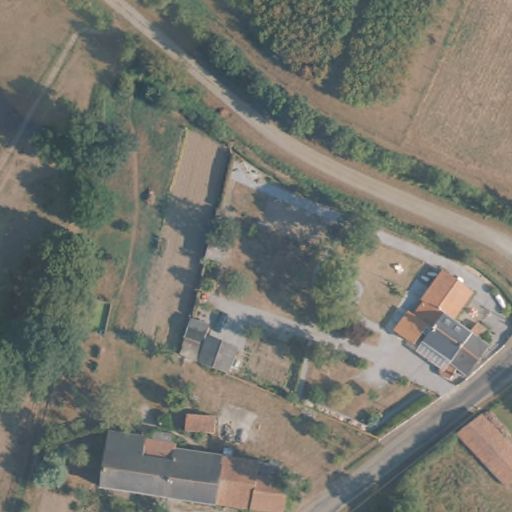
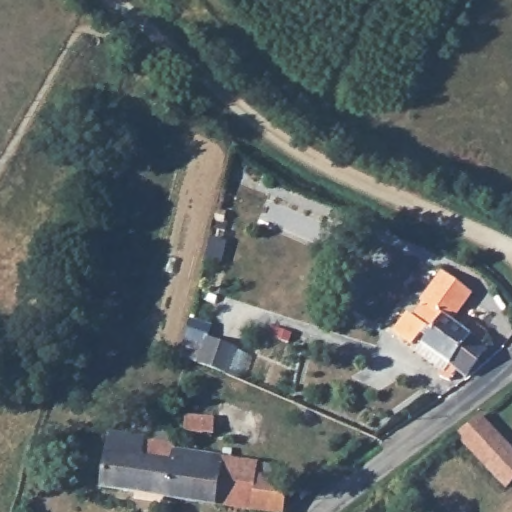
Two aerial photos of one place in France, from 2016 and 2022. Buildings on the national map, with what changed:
unchanged [(229,237),(222,254),(208,250),(214,232),(229,237)]
unchanged [(477,293),(458,322),(476,333),(481,325),(492,332),(485,342),(490,345),(472,375),(464,372),(459,377),(454,379),(448,377),(446,370),(450,362),(405,332),(417,317),(421,319),(432,303),(425,299),(446,271),(477,293)]
unchanged [(243,348),(233,374),(197,359),(208,333),(243,348)]
unchanged [(213,415),(212,431),(186,431),(187,415),(213,415)]
unchanged [(512,479),(499,494),(455,441),(475,421),(512,460),(512,479)]
unchanged [(270,470),(269,475),(288,481),(286,487),(297,491),(294,500),(283,497),(279,512),(267,512),(252,508),(101,483),(110,433),(139,439),(138,444),(149,446),(152,432),(171,436),(168,449),(244,462),(270,470)]

